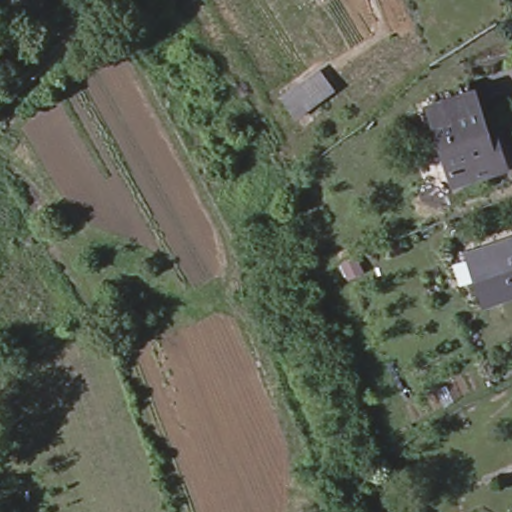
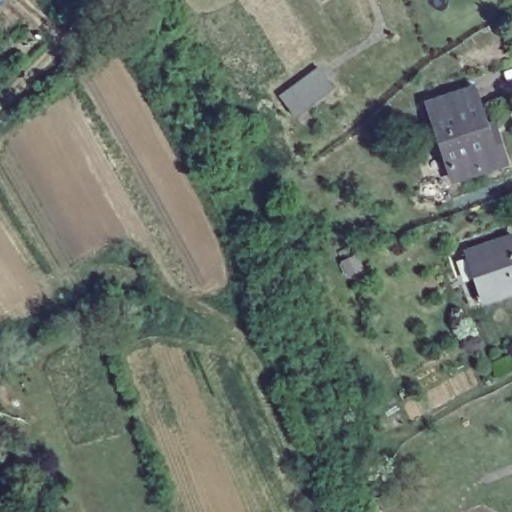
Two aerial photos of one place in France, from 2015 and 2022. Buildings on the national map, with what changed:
unchanged [(328,91),(300,110),(289,90),(317,72),(328,91)]
unchanged [(495,156),(442,172),(420,96),(465,81),(481,132),(488,130),(495,156)]
unchanged [(459,248),(507,230),(512,245),(512,286),(479,300),(459,248)]

